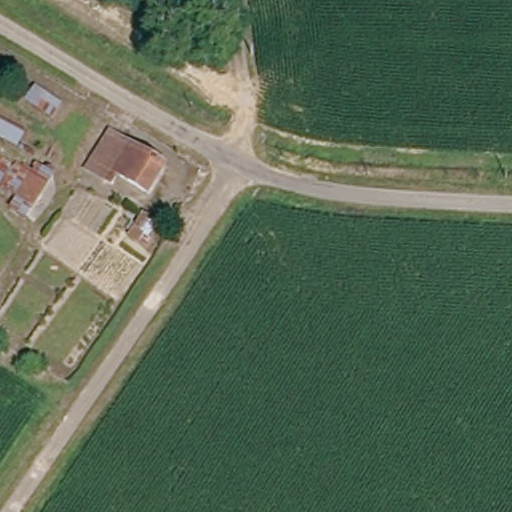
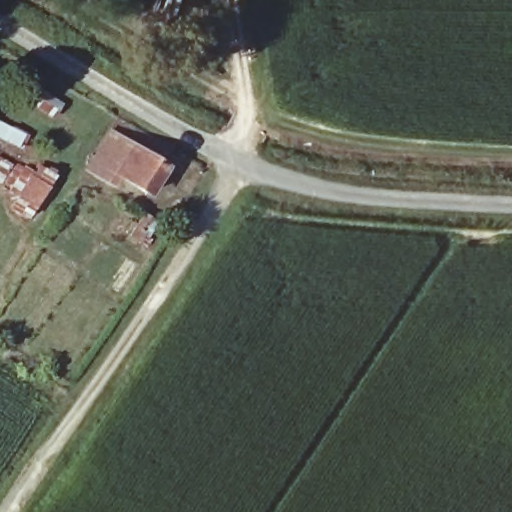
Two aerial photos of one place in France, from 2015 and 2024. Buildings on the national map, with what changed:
unchanged [(18,147),(0,136),(0,116),(27,133),(18,147)]
unchanged [(161,160),(146,184),(117,168),(110,178),(85,162),(106,128),(161,160)]
unchanged [(14,163),(31,171),(39,162),(56,172),(23,221),(8,208),(12,203),(6,196),(0,185),(0,158),(11,166),(14,163)]
unchanged [(135,234),(124,225),(140,205),(151,213),(135,234)]

